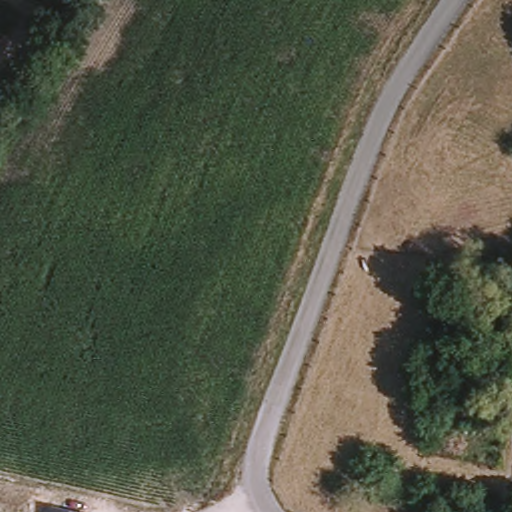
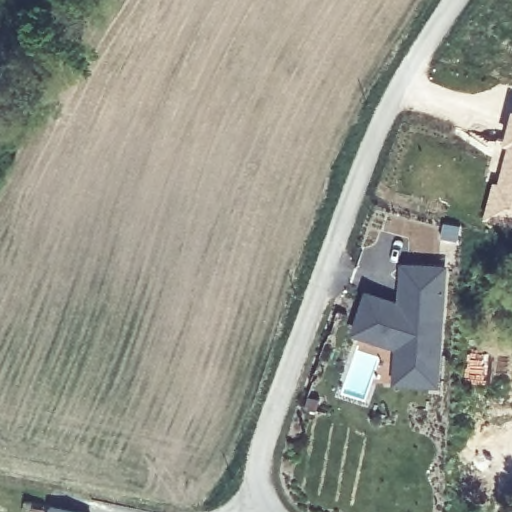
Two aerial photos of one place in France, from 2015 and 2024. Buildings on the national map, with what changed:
new [(497,179),(507,144),(503,143),(512,108),(512,225),(482,218),(492,178),(497,179)]
new [(364,288),(395,298),(398,260),(447,263),(438,391),(389,387),(392,349),(350,333),(364,288)]
unchanged [(48,512),(49,508),(71,512),(48,512)]

